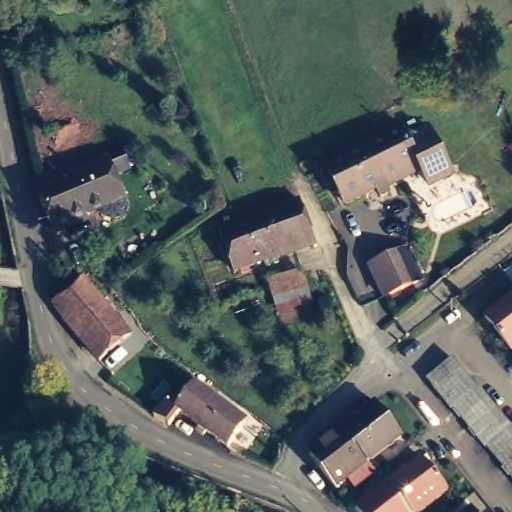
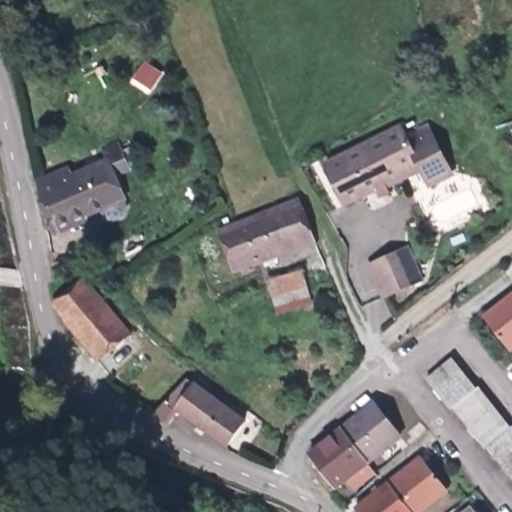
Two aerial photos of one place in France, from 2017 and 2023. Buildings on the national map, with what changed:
unchanged [(428,172),(417,179),(410,166),(408,167),(405,161),(373,176),(375,183),(334,203),(315,162),(402,119),(428,172)]
unchanged [(75,172),(111,156),(126,196),(55,224),(45,195),(47,194),(40,179),(71,166),(75,172)]
unchanged [(272,256),(275,263),(264,267),(262,260),(231,271),(217,227),(296,197),(312,241),(272,256)]
unchanged [(416,285),(386,297),(372,264),(402,252),(416,285)]
unchanged [(131,329),(100,354),(55,296),(85,272),(131,329)]
unchanged [(274,284),(305,272),(310,285),(278,297),(275,288),(274,284)]
unchanged [(509,344),(481,311),(512,287),(512,342),(509,344)]
unchanged [(472,383),(448,403),(440,393),(434,383),(426,372),(450,354),(457,364),(465,373),(472,383)]
unchanged [(190,380),(245,420),(227,443),(180,409),(171,422),(153,415),(190,380)]
unchanged [(480,440),(473,431),(466,421),(458,411),(451,403),(476,384),(482,392),(490,401),(497,411),(505,421),(480,440)]
unchanged [(343,428),(375,402),(401,436),(370,461),(343,428)]
unchanged [(506,469),(498,458),(490,449),(485,441),(510,422),(512,425),(512,476),(506,469)]
unchanged [(310,453),(343,428),(370,461),(336,487),(310,453)]
unchanged [(390,477),(420,453),(445,485),(415,509),(390,477)]
unchanged [(365,512),(357,503),(388,479),(390,477),(415,509),(411,512),(365,512)]
unchanged [(475,512),(467,512),(472,509),(475,512)]

